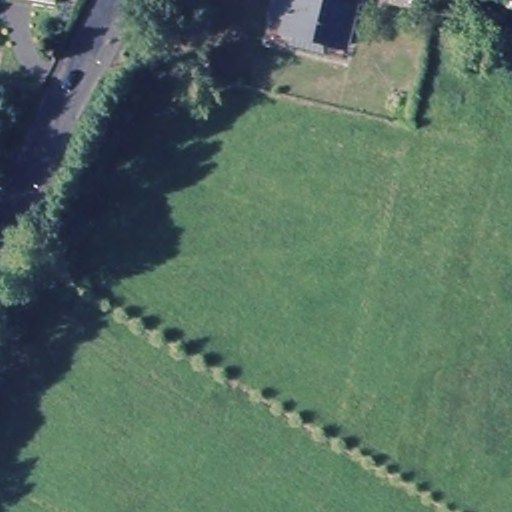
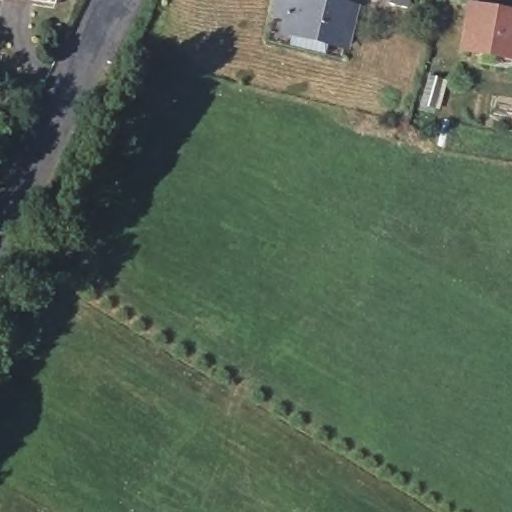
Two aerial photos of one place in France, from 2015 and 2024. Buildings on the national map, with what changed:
unchanged [(286,34),(290,23),(274,20),(279,0),(311,0),(356,10),(348,48),(286,34)]
unchanged [(396,0),(397,0),(414,0),(413,4),(396,0)]
new [(433,37),(439,0),(464,0),(455,42),(433,37)]
new [(467,3),(512,11),(512,62),(457,54),(467,3)]

